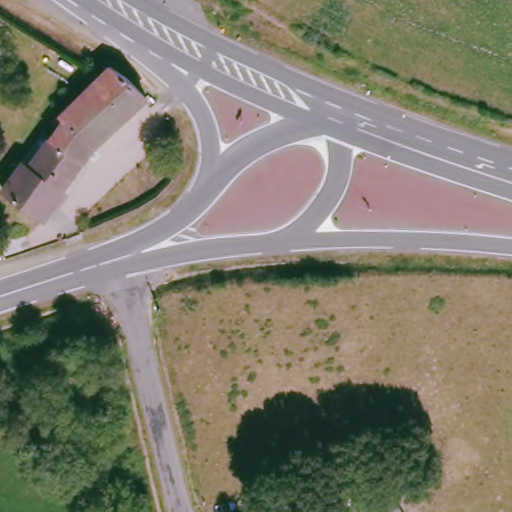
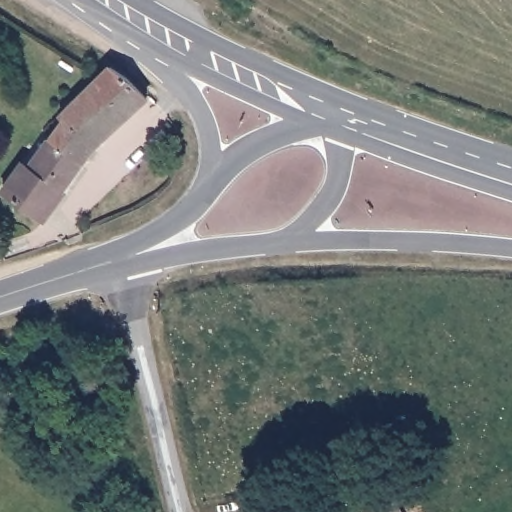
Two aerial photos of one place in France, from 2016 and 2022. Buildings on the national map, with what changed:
unchanged [(95,146),(49,217),(12,194),(31,166),(39,172),(65,132),(56,127),(61,119),(58,116),(105,68),(140,102),(95,146)]
unchanged [(11,243),(15,257),(0,262),(0,246),(11,243)]
unchanged [(352,512),(350,510),(390,490),(402,512),(352,512)]

